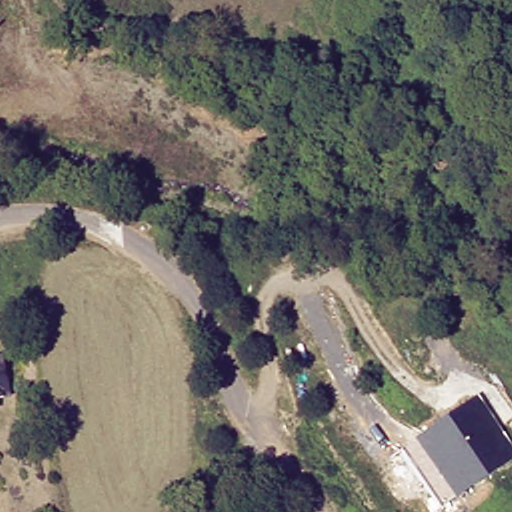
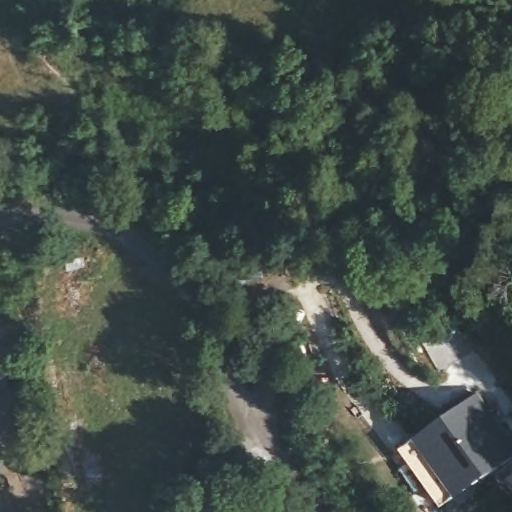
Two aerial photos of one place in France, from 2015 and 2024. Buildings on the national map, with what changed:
unchanged [(487,47),(486,5),(507,4),(507,46),(501,47),(487,47)]
unchanged [(12,385),(0,389),(0,350),(2,350),(12,385)]
unchanged [(480,392),(512,439),(512,457),(458,496),(443,507),(401,448),(416,438),(480,392)]
unchanged [(0,398),(2,402),(0,402),(0,398)]

